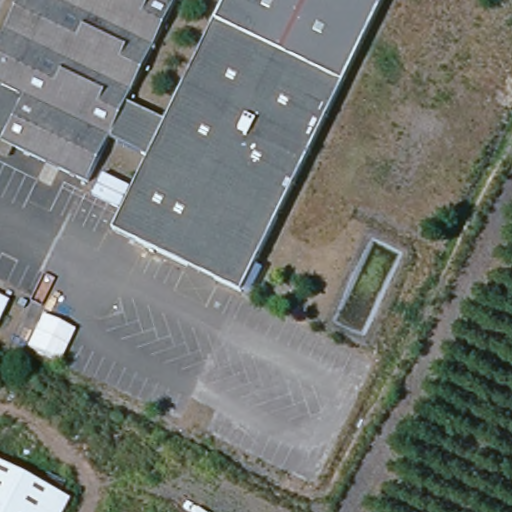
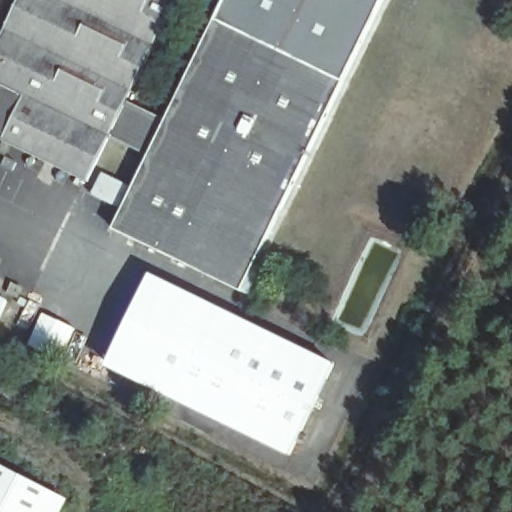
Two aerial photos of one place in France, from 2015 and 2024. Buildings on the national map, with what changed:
unchanged [(135,99),(113,139),(86,187),(0,139),(0,87),(5,78),(0,76),(0,0),(178,0),(183,2),(135,99)]
unchanged [(236,293),(108,225),(145,156),(113,139),(135,99),(165,116),(227,0),(292,0),(368,37),(236,293)]
unchanged [(292,0),(387,0),(368,37),(292,0)]
new [(290,455),(106,367),(151,274),(333,363),(290,455)]
unchanged [(4,300),(0,308),(0,298),(4,300)]
unchanged [(62,499),(54,512),(0,512),(0,464),(62,499)]

